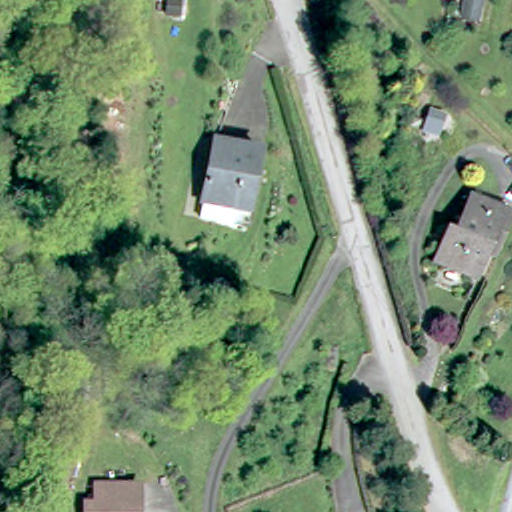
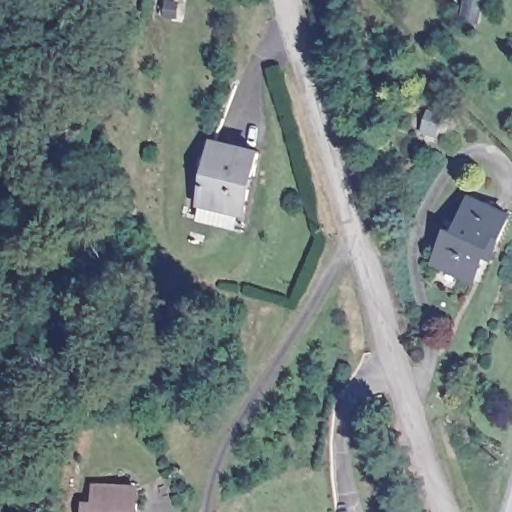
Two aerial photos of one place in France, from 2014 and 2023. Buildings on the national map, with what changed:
unchanged [(260,138),(248,215),(198,206),(211,132),(260,138)]
unchanged [(456,227),(474,194),(507,211),(491,245),(485,242),(468,274),(435,257),(452,225),(456,227)]
unchanged [(139,487),(138,512),(75,512),(78,483),(139,487)]

